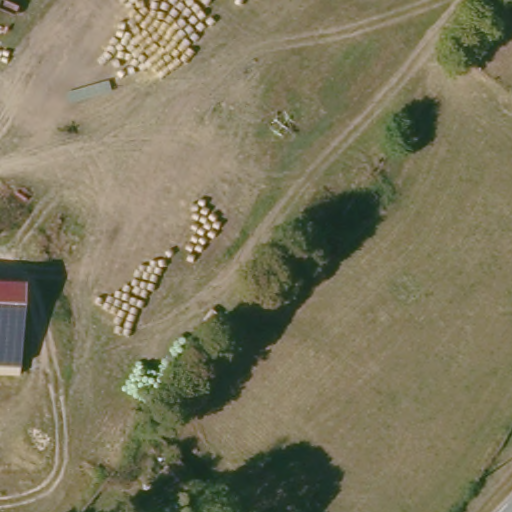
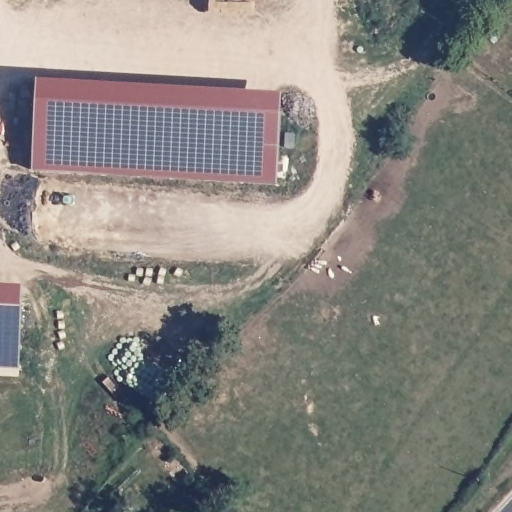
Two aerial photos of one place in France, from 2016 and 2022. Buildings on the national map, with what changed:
new [(37,112),(285,111),(285,182),(37,182),(37,112)]
unchanged [(0,283),(22,285),(18,368),(18,377),(0,375),(0,283)]

